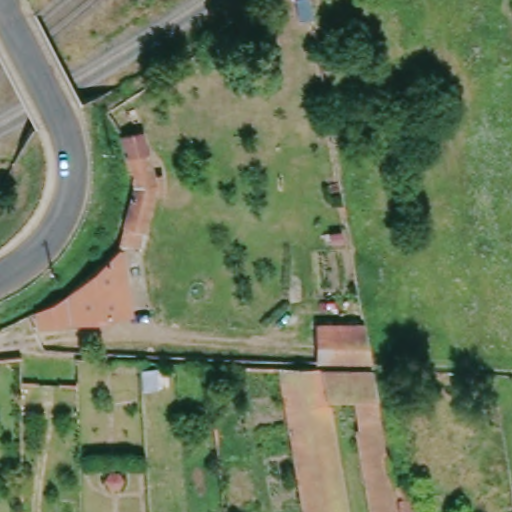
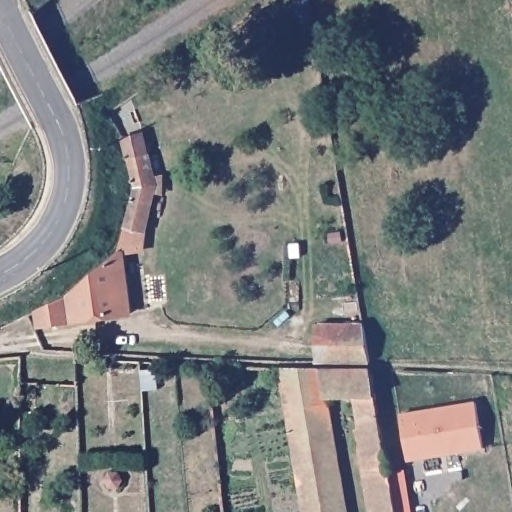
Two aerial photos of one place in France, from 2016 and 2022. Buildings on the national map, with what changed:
unchanged [(135,137),(154,189),(142,243),(119,248),(115,247),(125,184),(115,145),(135,137)]
unchanged [(119,248),(135,308),(30,341),(28,323),(62,308),(115,247),(119,248)]
unchanged [(368,360),(367,362),(305,360),(306,325),(363,325),(368,360)]
unchanged [(322,400),(344,512),(299,512),(277,372),(372,372),(377,398),(350,399),(322,400)]
unchanged [(350,399),(377,398),(390,475),(396,512),(370,512),(350,399)]
new [(408,462),(401,414),(475,402),(484,450),(408,462)]

